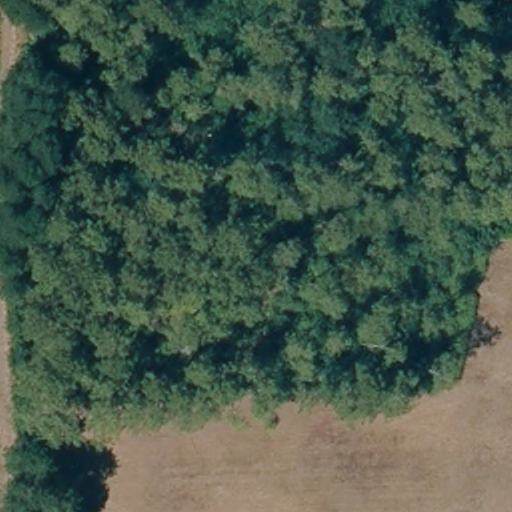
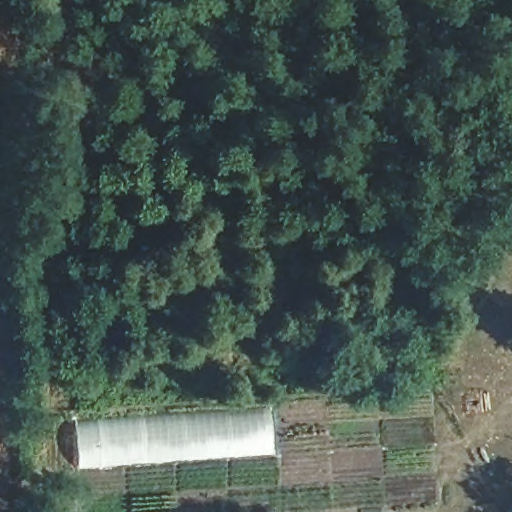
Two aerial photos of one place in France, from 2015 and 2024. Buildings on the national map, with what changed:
new [(268,407),(272,452),(75,467),(74,421),(268,407)]

